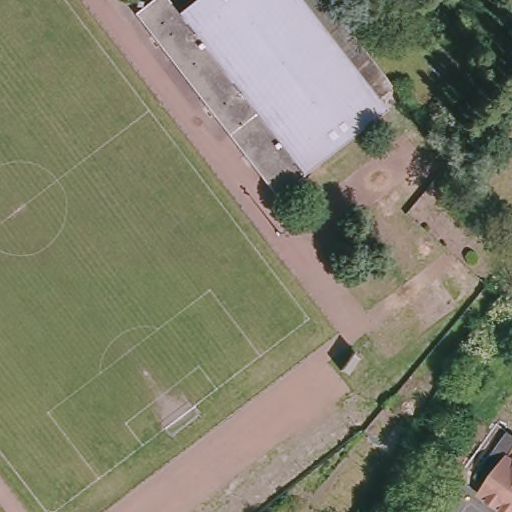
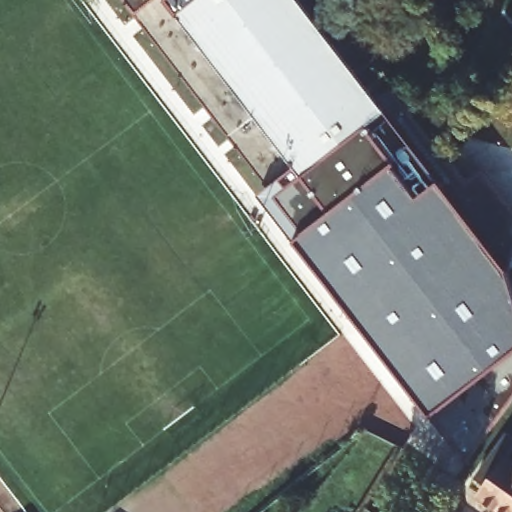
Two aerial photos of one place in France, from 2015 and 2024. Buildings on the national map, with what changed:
new [(130,0),(147,0),(136,9),(130,0)]
unchanged [(384,103),(274,187),(136,9),(147,0),(165,0),(173,11),(187,0),(329,0),(391,80),(376,93),(384,103)]
new [(165,0),(187,0),(173,11),(165,0)]
new [(510,271),(512,278),(512,397),(467,454),(434,414),(299,239),(262,195),(274,187),(384,103),(510,271)]
unchanged [(499,507),(482,494),(481,494),(482,492),(487,484),(477,477),(496,450),(509,431),(512,432),(512,449),(509,453),(512,454),(512,488),(499,507)]
unchanged [(512,488),(512,512),(507,512),(499,507),(512,488)]

